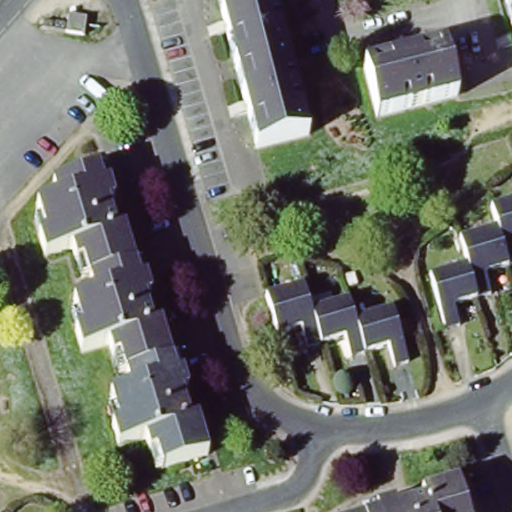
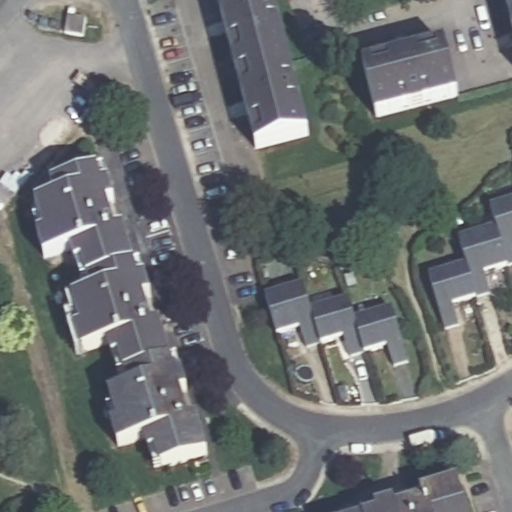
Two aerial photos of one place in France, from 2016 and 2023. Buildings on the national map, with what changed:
unchanged [(257,143),(221,0),(276,0),(310,132),(257,143)]
unchanged [(511,0),(512,0),(512,4),(511,0)]
unchanged [(70,30),(73,14),(90,16),(87,33),(70,30)]
unchanged [(379,118),(367,66),(450,43),(465,95),(379,118)]
unchanged [(154,454),(150,437),(124,445),(119,423),(124,422),(115,391),(138,384),(131,356),(122,358),(119,340),(92,347),(87,324),(95,322),(87,292),(103,288),(97,258),(89,259),(87,243),(60,249),(55,225),(60,224),(54,193),(67,190),(65,180),(104,168),(107,178),(112,177),(119,195),(112,197),(120,226),(127,224),(141,273),(149,271),(154,290),(147,292),(155,322),(164,319),(179,369),(185,367),(190,385),(185,387),(192,416),(202,413),(213,450),(165,463),(164,452),(154,454)]
unchanged [(510,272),(488,279),(493,297),(477,302),(462,308),(466,328),(449,333),(437,291),(472,280),(465,254),(504,242),(497,218),(512,214),(512,272),(510,272)]
unchanged [(288,313),(325,305),(332,325),(370,315),(385,370),(370,374),(364,354),(342,359),(326,363),(321,343),(299,348),(285,351),(280,332),(254,338),(242,300),(281,290),(288,313)]
unchanged [(425,494),(457,482),(468,512),(400,512),(427,502),(425,494)]
unchanged [(397,502),(400,512),(375,512),(375,509),(397,502)]

